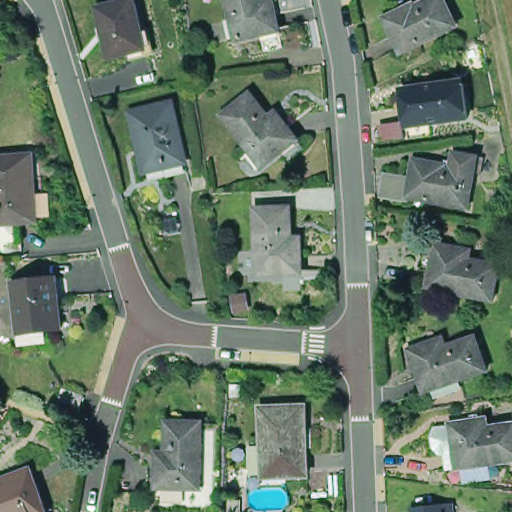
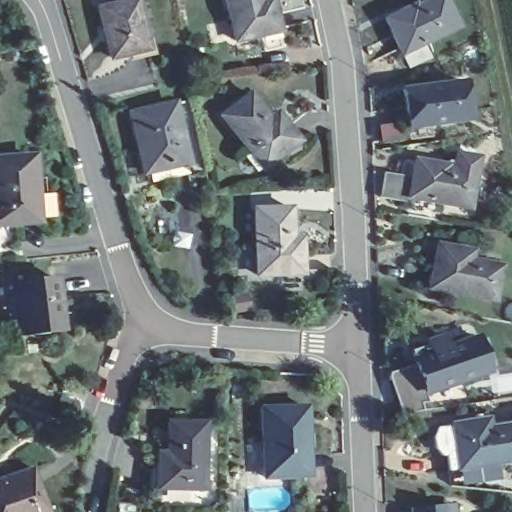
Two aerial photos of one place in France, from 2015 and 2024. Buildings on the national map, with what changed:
unchanged [(227,0),(266,0),(270,14),(279,13),(285,35),(240,46),(227,0)]
unchanged [(385,24),(412,10),(414,14),(440,0),(446,0),(460,30),(402,59),(385,24)]
unchanged [(119,62),(108,12),(143,2),(155,52),(119,62)]
unchanged [(413,125),(404,91),(434,86),(434,90),(467,84),(473,114),(413,125)]
unchanged [(238,165),(248,159),(220,122),(247,100),(267,125),(277,117),(305,156),(293,165),(285,157),(262,177),(259,173),(250,181),(238,165)]
unchanged [(147,176),(135,115),(176,105),(190,166),(147,176)]
unchanged [(417,160),(447,165),(448,160),(455,160),(456,154),(480,158),(477,175),(471,210),(411,198),(410,205),(382,200),(388,175),(413,180),(417,160)]
unchanged [(0,160),(37,157),(45,227),(0,230),(0,160)]
unchanged [(261,281),(257,212),(295,211),(297,244),(306,245),(308,278),(261,281)]
unchanged [(502,302),(436,289),(444,245),(462,248),(480,251),(478,261),(508,266),(502,302)]
unchanged [(23,326),(17,282),(63,275),(70,333),(46,336),(25,340),(23,326)]
unchanged [(492,376),(427,398),(412,355),(430,348),(447,341),(448,348),(478,337),(492,376)]
unchanged [(465,443),(460,445),(452,440),(450,429),(455,422),(460,418),(471,417),(470,413),(490,408),(507,405),(509,413),(512,413),(512,450),(480,455),(467,458),(465,443)]
unchanged [(271,480),(270,411),(313,410),(316,480),(271,480)]
unchanged [(160,475),(170,475),(170,470),(170,457),(180,457),(180,428),(215,426),(215,492),(170,493),(170,490),(160,491),(160,475)]
unchanged [(0,484),(41,470),(55,512),(0,512),(0,484)]

